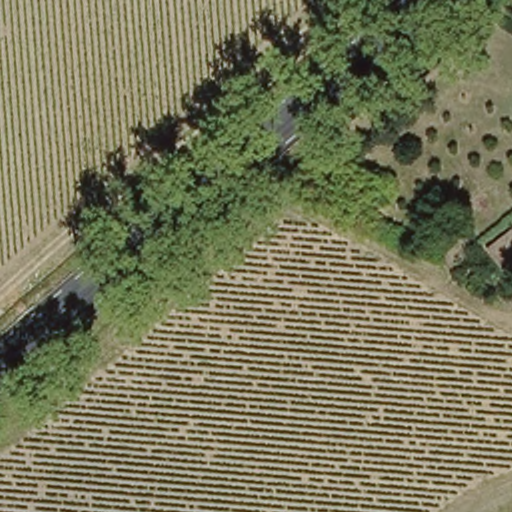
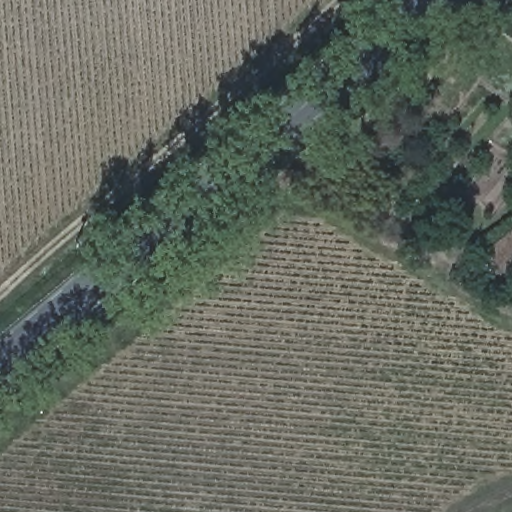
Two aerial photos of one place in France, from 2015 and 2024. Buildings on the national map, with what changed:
unchanged [(501,271),(484,250),(512,227),(512,261),(501,271)]

